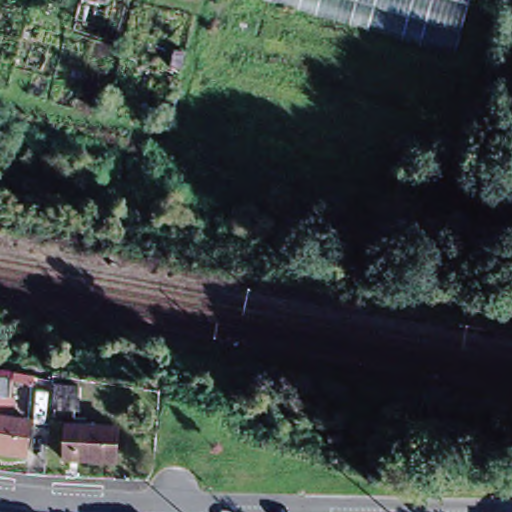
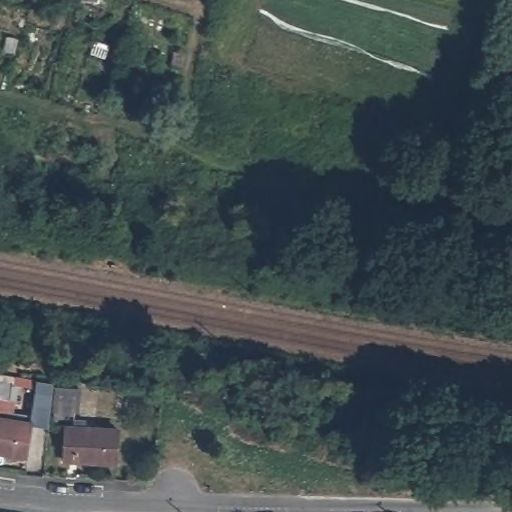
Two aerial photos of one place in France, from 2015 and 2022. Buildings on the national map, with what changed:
demolished [(274,1),(274,0),(483,0),(471,55),(274,1)]
unchanged [(8,399),(0,398),(0,380),(11,382),(8,399)]
unchanged [(116,465),(63,461),(65,426),(53,426),(56,387),(81,389),(80,413),(73,413),(73,419),(86,419),(85,428),(118,430),(116,465)]
unchanged [(30,423),(24,458),(0,454),(0,418),(30,423)]

